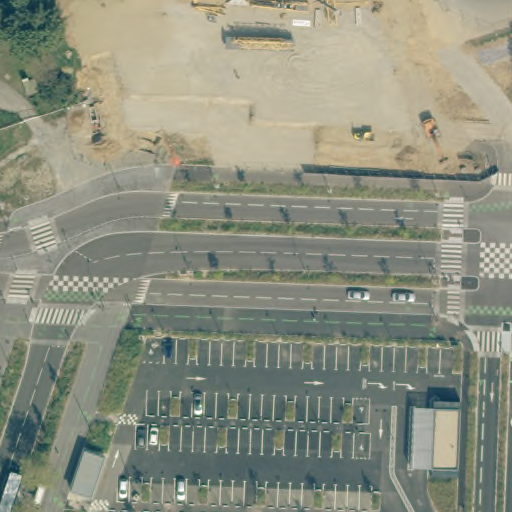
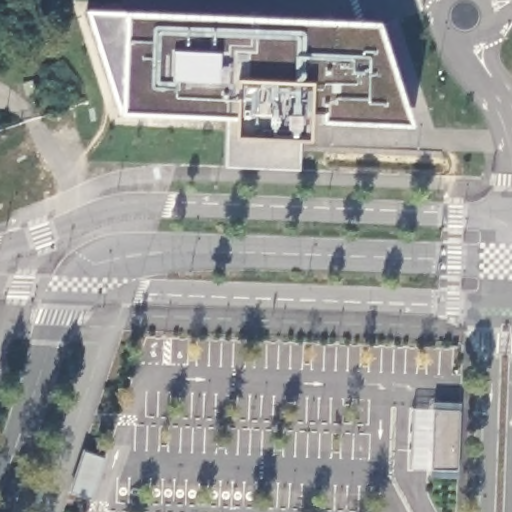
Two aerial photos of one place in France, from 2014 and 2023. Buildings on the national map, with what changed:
new [(412,127),(321,123),(321,111),(311,111),(310,141),(304,141),(299,170),(225,167),(228,121),(235,120),(122,114),(121,115),(86,10),(124,11),(379,23),(412,127)]
unchanged [(430,477),(430,470),(411,468),(414,408),(433,409),(434,403),(460,405),(457,478),(430,477)]

